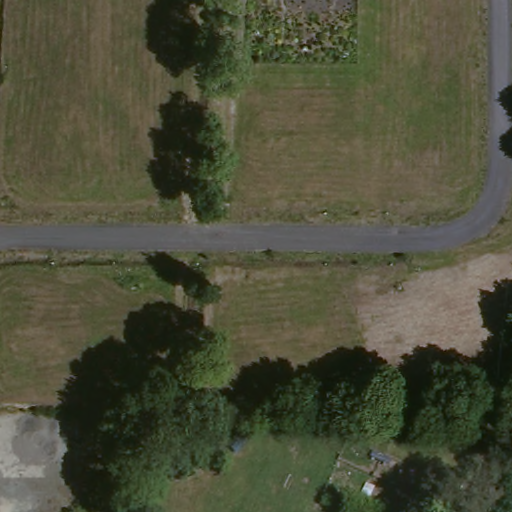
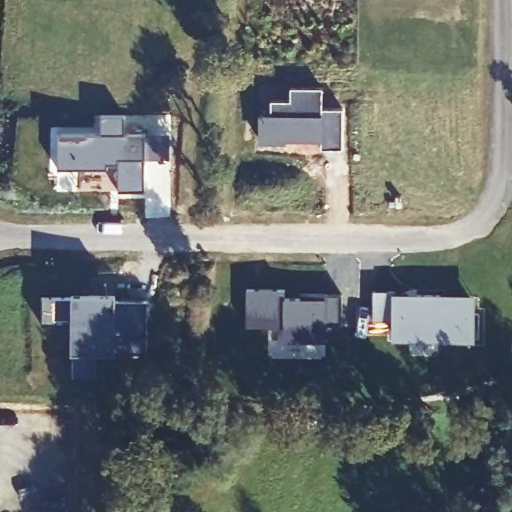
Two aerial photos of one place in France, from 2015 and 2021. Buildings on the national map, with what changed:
new [(271,117),(271,102),(290,102),(290,89),(322,89),(322,110),(343,110),(343,150),(321,150),(321,141),(283,140),(283,144),(261,144),(260,117),(271,117)]
new [(101,135),(101,116),(129,116),(129,135),(149,135),(174,135),(174,160),(149,160),(149,192),(122,192),(122,160),(108,160),(108,170),(58,170),(58,135),(101,135)]
new [(284,291),(285,300),(301,300),(301,295),(324,295),(342,295),(343,325),(326,325),(326,342),(284,342),(284,328),(247,328),(247,291),(284,291)]
new [(476,338),(392,337),(392,292),(475,292),(476,338)]
new [(77,298),(77,295),(117,295),(117,301),(149,301),(149,353),(98,352),(98,378),(74,378),(74,325),(44,325),(44,298),(77,298)]

